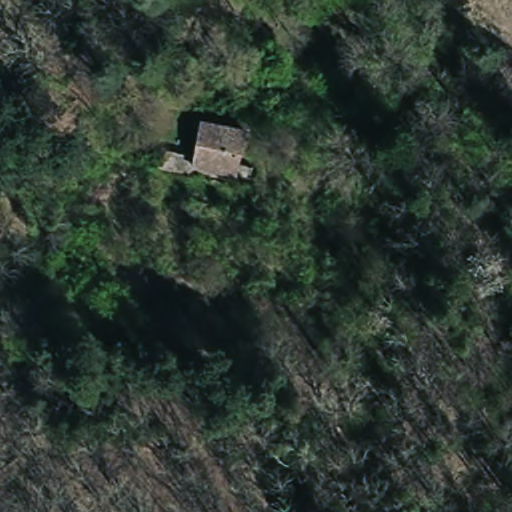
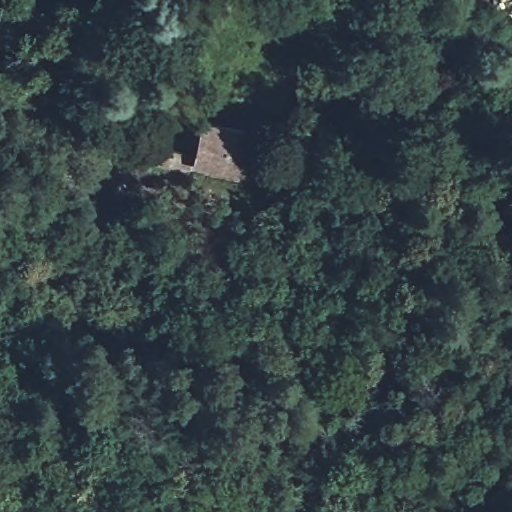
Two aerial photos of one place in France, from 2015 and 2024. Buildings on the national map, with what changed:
unchanged [(3,84),(11,65),(64,88),(55,107),(3,84)]
unchanged [(159,154),(191,157),(196,120),(238,127),(230,178),(158,170),(159,154)]

